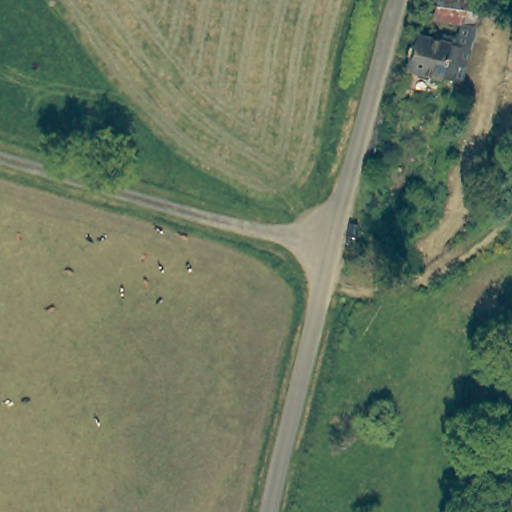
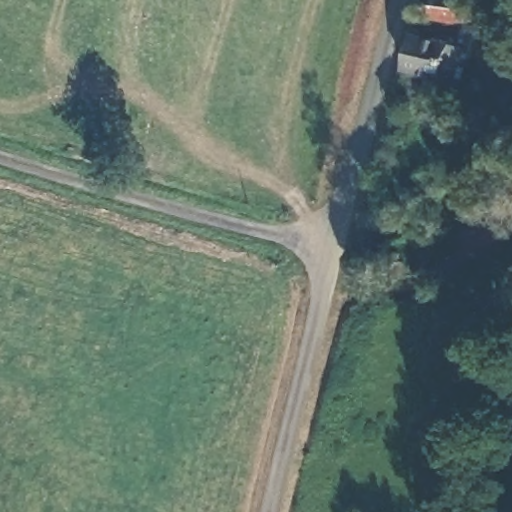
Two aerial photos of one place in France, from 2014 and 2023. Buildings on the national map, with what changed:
unchanged [(444,37),(459,42),(461,26),(436,21),(442,0),(473,0),(481,2),(475,39),(464,85),(408,70),(416,37),(441,44),(444,37)]
unchanged [(384,247),(399,250),(396,262),(381,259),(384,247)]

